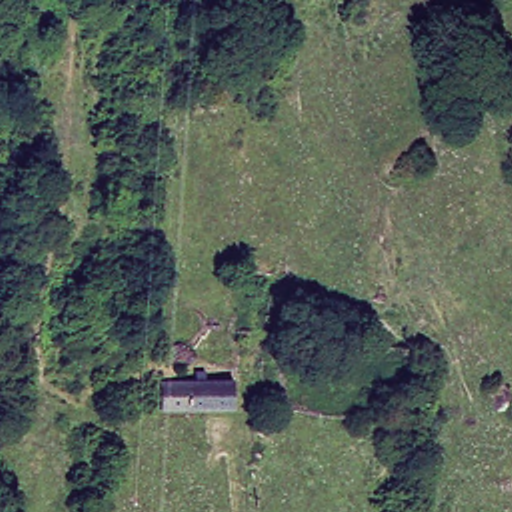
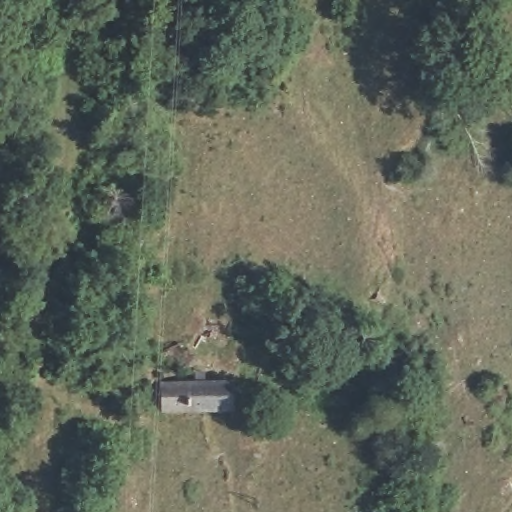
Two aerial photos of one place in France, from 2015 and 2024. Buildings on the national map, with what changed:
unchanged [(232,372),(232,398),(199,398),(198,408),(182,407),(182,397),(160,395),(161,371),(232,372)]

